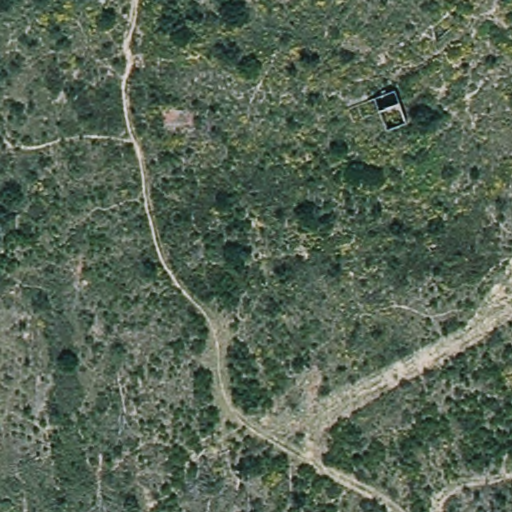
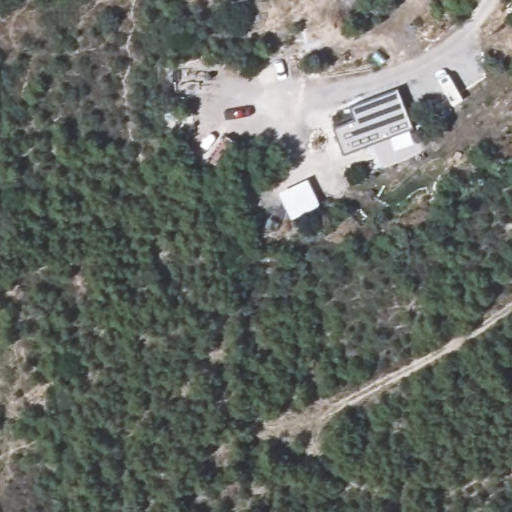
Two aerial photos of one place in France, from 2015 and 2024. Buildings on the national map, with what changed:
new [(343,154),(333,127),(355,120),(350,106),(398,88),(413,126),(343,154)]
demolished [(415,123),(372,139),(362,105),(403,90),(415,123)]
unchanged [(196,134),(160,133),(159,107),(196,107),(196,134)]

